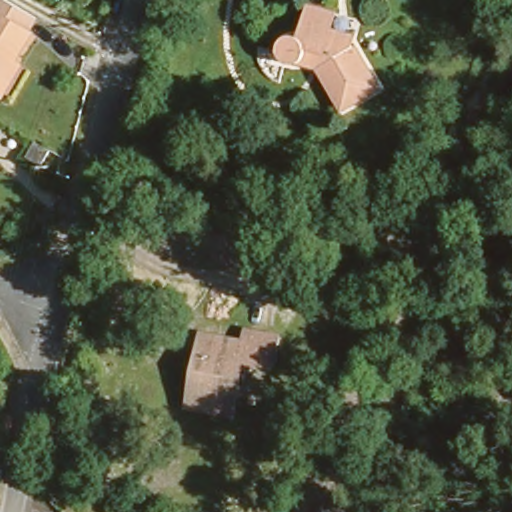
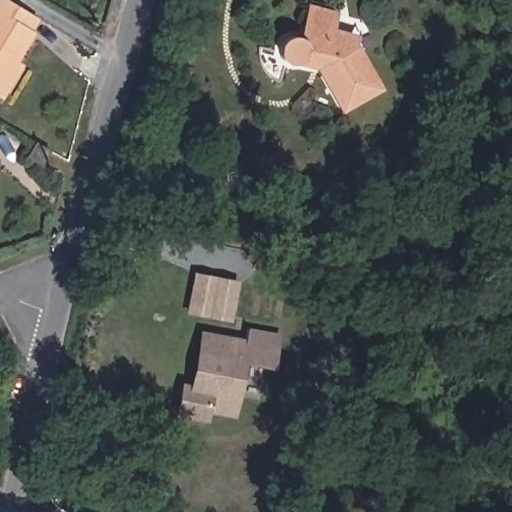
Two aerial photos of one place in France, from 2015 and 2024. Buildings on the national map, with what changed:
unchanged [(0,90),(0,0),(16,0),(37,12),(28,27),(31,28),(13,56),(19,60),(1,91),(0,90)]
unchanged [(313,62),(307,61),(295,57),(294,58),(293,59),(290,59),(286,59),(283,58),(281,57),(278,55),(276,52),(275,50),(274,46),(274,42),(275,39),(277,37),(278,34),(281,32),(283,31),(286,30),(289,30),(292,31),(294,32),(296,33),(305,1),(331,8),(327,24),(340,28),(353,32),(351,41),(375,83),(341,102),(337,104),(313,62)]
unchanged [(50,150),(41,165),(27,157),(36,142),(50,150)]
new [(231,319),(211,315),(191,311),(198,274),(218,278),(238,282),(231,319)]
unchanged [(204,348),(207,330),(250,338),(252,327),(282,332),(276,361),(248,355),(238,408),(212,403),(194,399),(204,348)]
unchanged [(9,433),(0,430),(4,415),(12,417),(9,433)]

